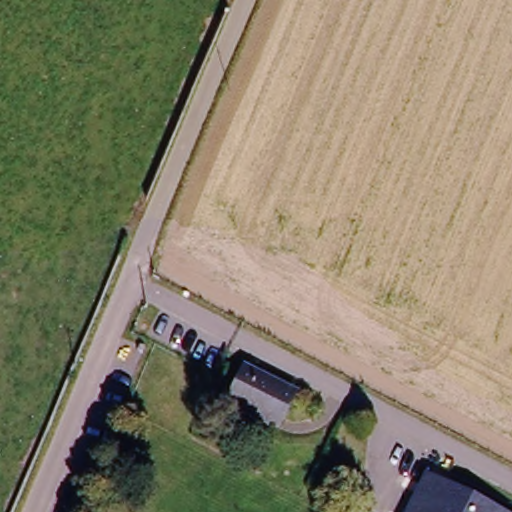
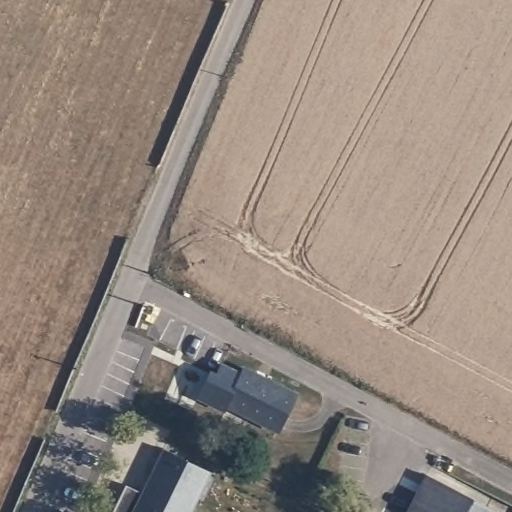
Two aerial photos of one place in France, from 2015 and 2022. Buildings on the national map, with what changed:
unchanged [(275,430),(225,404),(242,369),(293,395),(275,430)]
new [(190,512),(111,512),(121,490),(124,484),(140,492),(137,498),(161,448),(210,472),(190,512)]
unchanged [(506,512),(405,512),(426,471),(506,512)]

